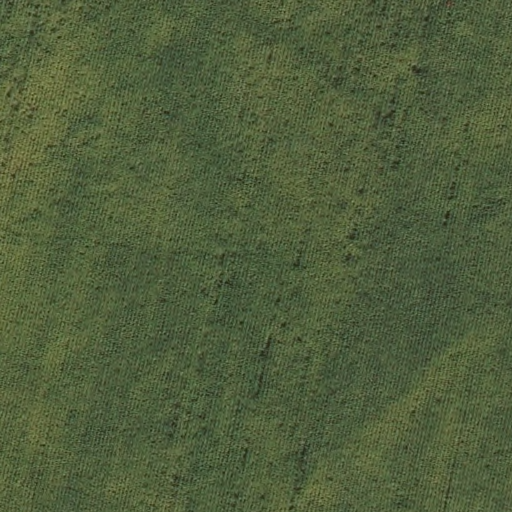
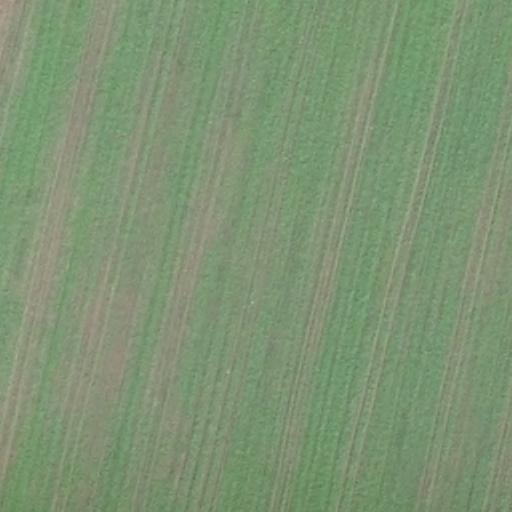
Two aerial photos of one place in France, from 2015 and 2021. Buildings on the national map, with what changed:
[]

